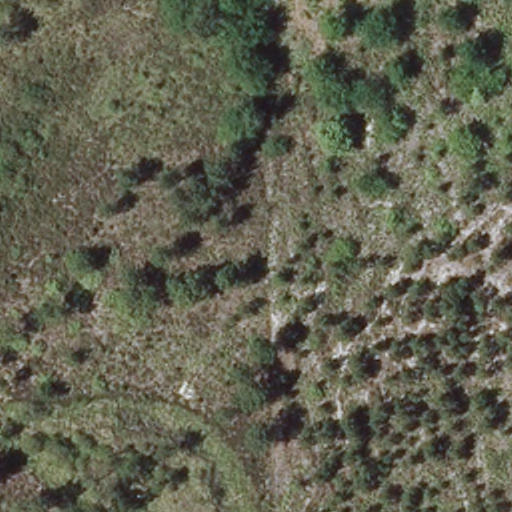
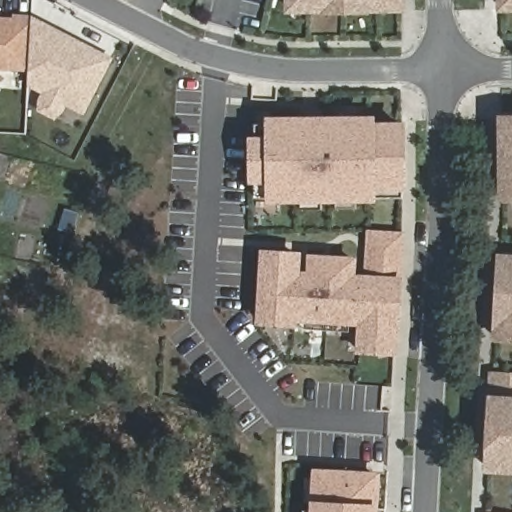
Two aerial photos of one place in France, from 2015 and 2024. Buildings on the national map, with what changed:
new [(316,4),(296,4),(296,0),(407,0),(407,3),(387,3),(369,3),(333,4),(316,4)]
new [(508,5),(507,0),(512,0),(512,5),(508,5)]
new [(12,16),(31,17),(28,69),(0,68),(0,21),(12,22),(12,16)]
new [(83,112),(28,83),(31,18),(110,59),(83,112)]
new [(66,103),(61,112),(54,118),(39,111),(40,102),(45,92),(66,103)]
new [(498,203),(497,115),(512,115),(512,202),(498,203)]
new [(373,198),(270,198),(270,196),(255,196),(255,179),(253,179),(252,141),(255,141),(255,123),(270,123),(270,121),(372,121),(372,127),(403,127),(403,187),(403,198),(373,198)]
new [(371,243),(402,244),(399,292),(368,290),(371,243)]
new [(490,342),(497,253),(512,254),(512,343),(490,342)]
new [(361,338),(362,320),(356,319),(356,330),(305,328),(306,317),(293,316),(293,311),(293,322),(262,320),(262,309),(265,263),(297,265),(312,267),(324,267),(323,287),(329,288),(331,268),(353,269),(352,289),(399,292),(399,298),(396,340),(396,351),(361,349),(361,338)]
new [(485,473),(488,395),(489,371),(512,373),(512,475),(485,473)]
new [(315,507),(316,500),(305,499),(306,474),(317,474),(317,471),(377,474),(375,506),(386,507),(386,512),(304,512),(304,506),(315,507)]

